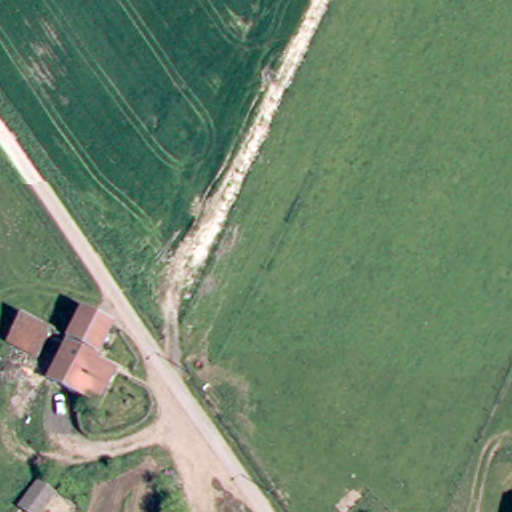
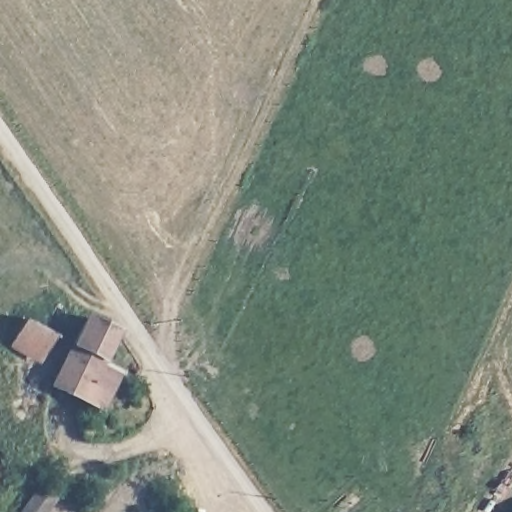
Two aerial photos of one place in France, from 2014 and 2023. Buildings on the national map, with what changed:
unchanged [(105,410),(85,401),(56,387),(90,319),(117,333),(102,364),(122,373),(105,410)]
unchanged [(42,367),(12,352),(26,323),(57,338),(42,367)]

